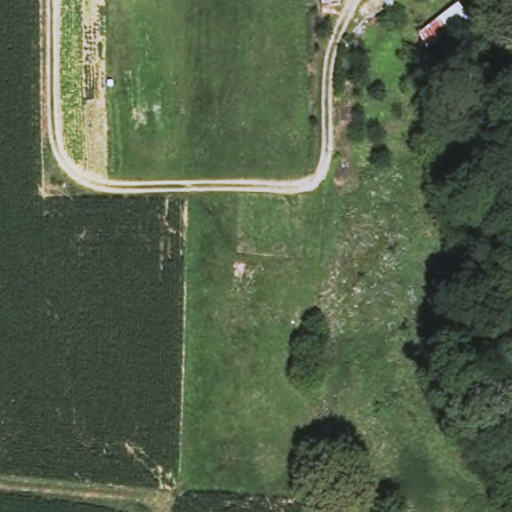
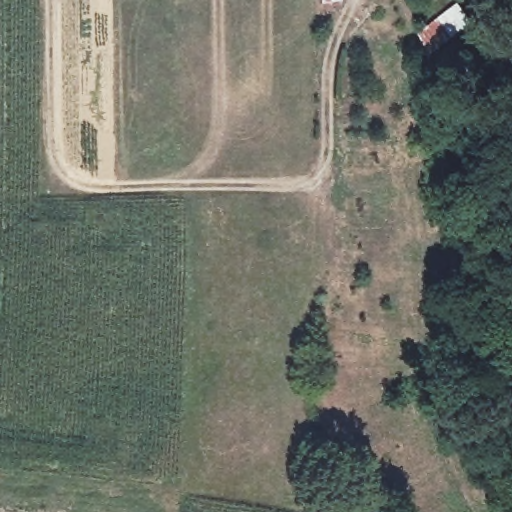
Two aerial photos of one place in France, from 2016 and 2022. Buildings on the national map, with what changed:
[]

